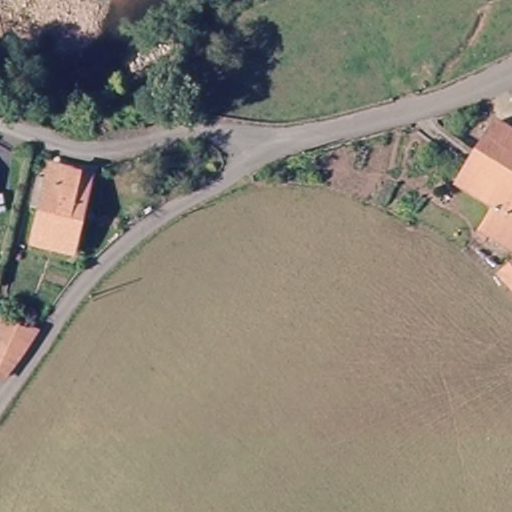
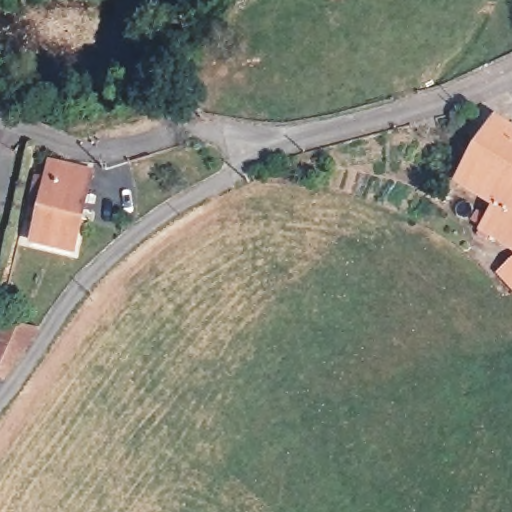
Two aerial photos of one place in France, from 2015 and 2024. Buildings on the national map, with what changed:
unchanged [(496,124),(512,134),(512,218),(492,205),(456,182),(496,124)]
unchanged [(40,179),(46,180),(49,167),(63,170),(96,176),(77,255),(33,246),(41,210),(33,208),(40,179)]
unchanged [(492,205),(512,218),(512,250),(478,225),(492,205)]
unchanged [(512,258),(512,285),(499,271),(512,258)]
unchanged [(7,328),(9,320),(42,326),(37,333),(21,355),(2,375),(0,374),(0,326),(7,328)]

